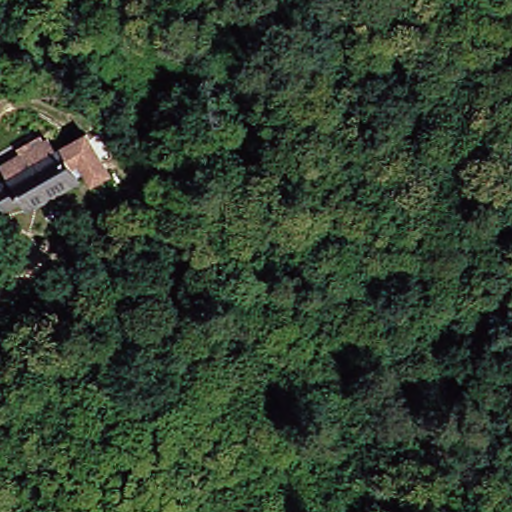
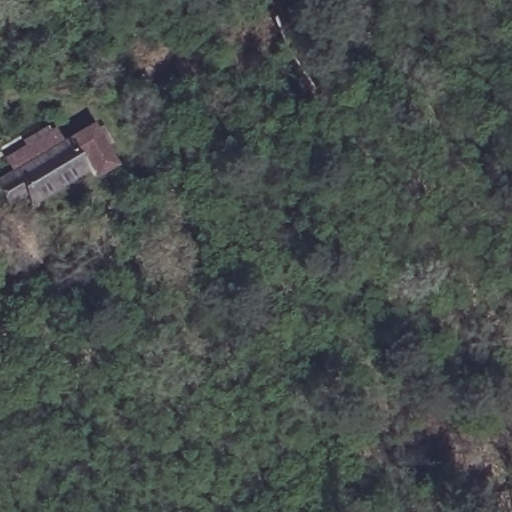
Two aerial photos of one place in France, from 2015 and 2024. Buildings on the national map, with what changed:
unchanged [(52,145),(85,127),(105,167),(87,177),(76,155),(67,160),(72,170),(18,199),(14,192),(0,199),(0,173),(3,171),(0,164),(0,155),(45,131),(52,145)]

